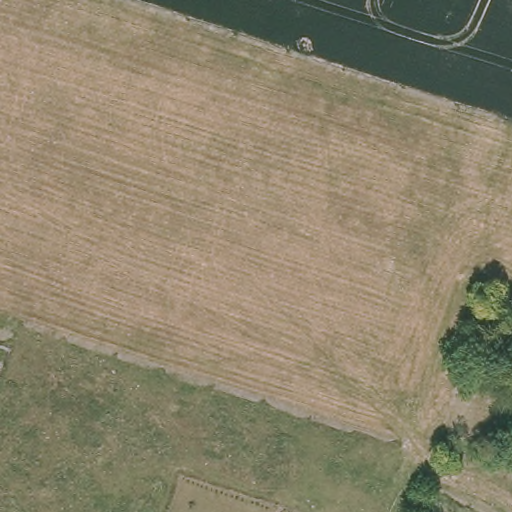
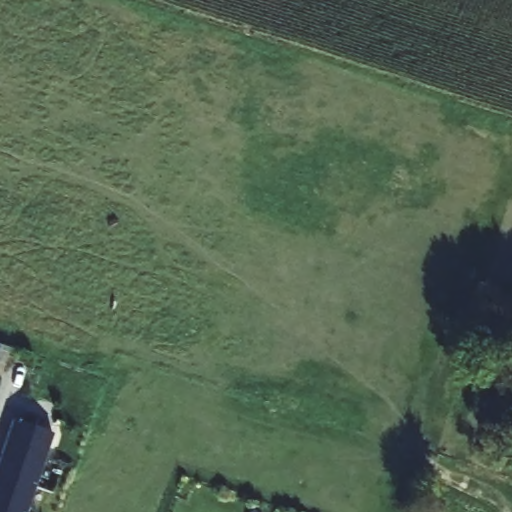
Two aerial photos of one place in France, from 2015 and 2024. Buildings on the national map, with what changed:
new [(27,512),(0,512),(0,459),(12,422),(52,435),(27,512)]

